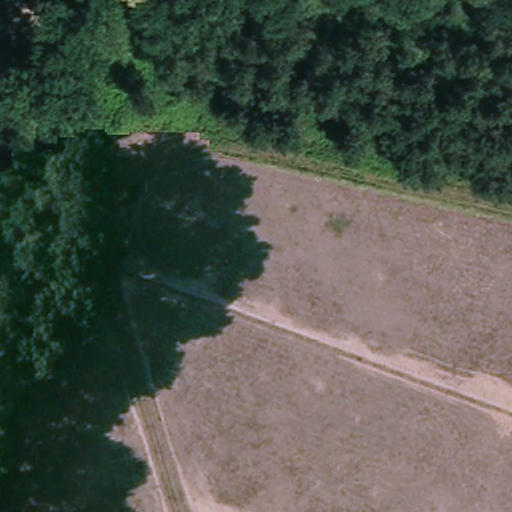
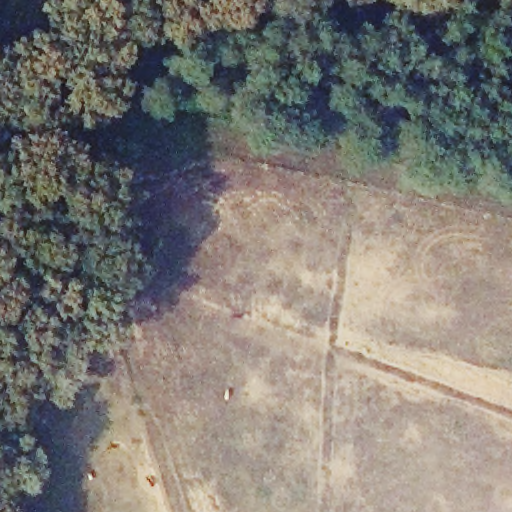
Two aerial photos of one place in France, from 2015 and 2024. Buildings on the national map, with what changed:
[]

